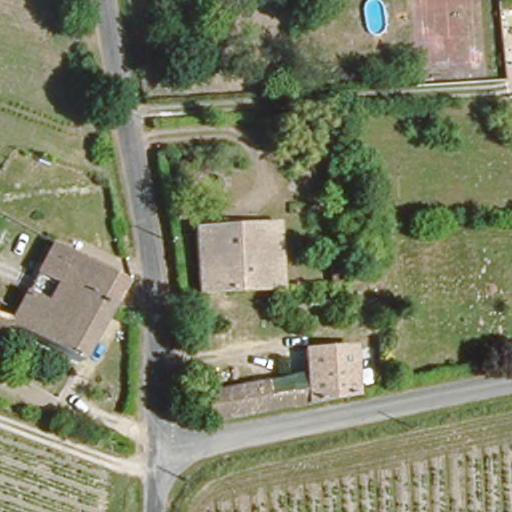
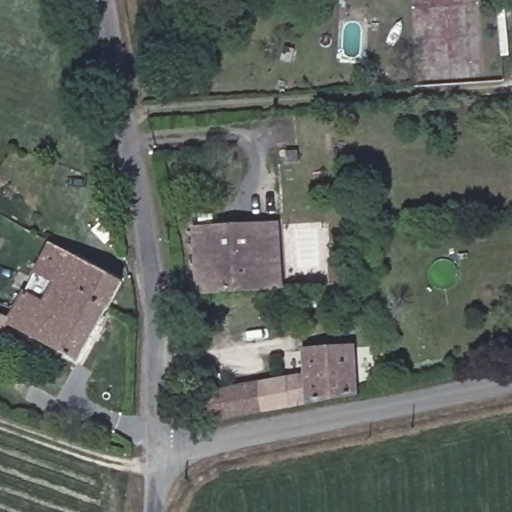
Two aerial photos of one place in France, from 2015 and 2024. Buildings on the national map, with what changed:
unchanged [(193,232),(276,227),(283,290),(198,295),(193,232)]
unchanged [(119,280),(76,357),(6,318),(51,241),(119,280)]
unchanged [(329,280),(328,271),(325,271),(326,264),(339,261),(340,280),(329,280)]
unchanged [(6,318),(0,332),(0,315),(6,318)]
unchanged [(223,417),(208,418),(202,391),(306,374),(303,351),(351,347),(354,393),(223,417)]

